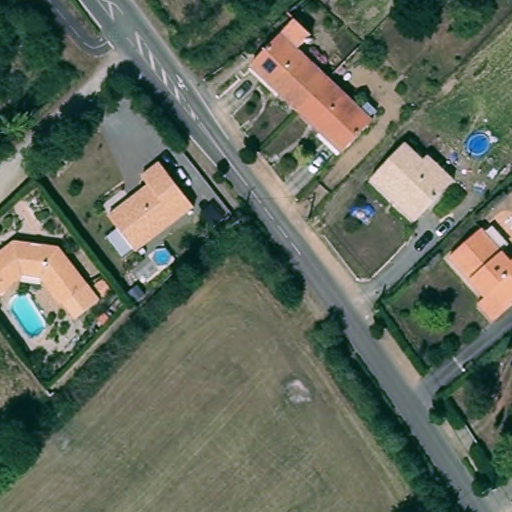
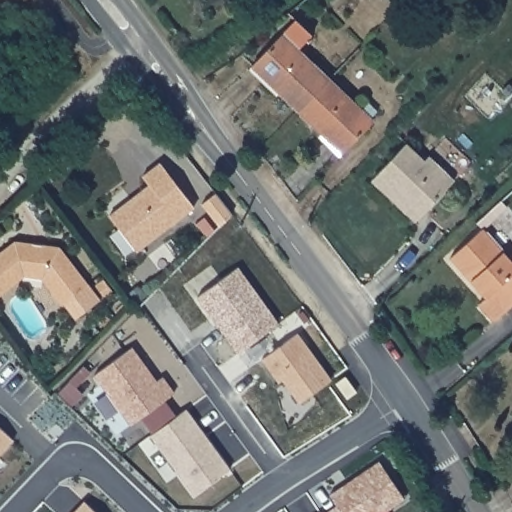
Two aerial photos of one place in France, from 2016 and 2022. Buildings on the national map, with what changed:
unchanged [(251,67),(295,21),(312,36),(298,51),(330,81),(300,113),(251,67)]
unchanged [(362,112),(368,104),(377,112),(370,120),(372,121),(342,153),(300,113),(330,81),(362,112)]
unchanged [(401,146),(419,163),(423,158),(449,182),(410,223),(366,182),(401,146)]
unchanged [(195,203),(140,248),(111,211),(149,181),(144,173),(161,161),(195,203)]
unchanged [(495,318),(480,301),(487,294),(451,254),(481,227),(511,259),(512,258),(512,303),(495,318)]
unchanged [(59,248),(100,301),(75,320),(44,280),(20,277),(0,293),(0,254),(14,243),(59,248)]
new [(239,352),(200,296),(237,267),(277,320),(239,352)]
unchanged [(104,310),(112,319),(106,324),(98,316),(104,310)]
new [(297,401),(282,377),(277,382),(262,358),(298,331),(331,375),(297,401)]
new [(175,391),(131,423),(95,374),(133,345),(158,379),(165,375),(175,391)]
new [(230,466),(194,493),(150,434),(187,408),(230,466)]
new [(0,452),(0,426),(12,439),(0,452)]
new [(335,503),(328,494),(381,458),(402,496),(385,508),(387,512),(323,512),(335,503)]
new [(82,499),(96,512),(71,512),(82,499)]
new [(321,510),(321,512),(318,512),(321,510)]

